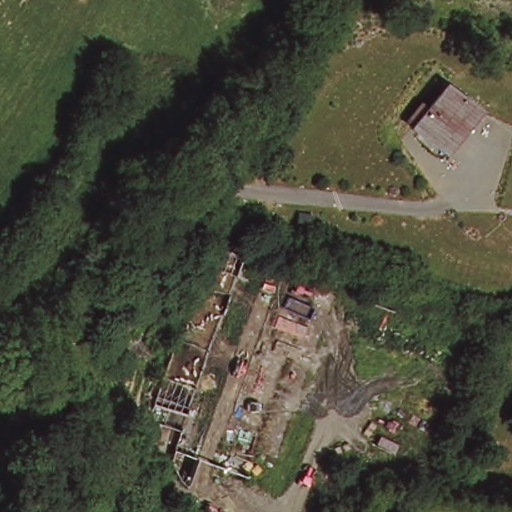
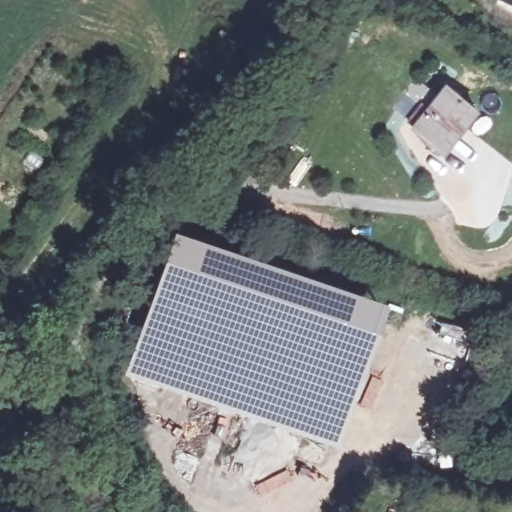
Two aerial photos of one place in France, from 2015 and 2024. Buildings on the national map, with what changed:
new [(512,3),(505,0),(512,0),(512,3)]
demolished [(434,80),(467,98),(441,147),(407,129),(434,80)]
new [(413,127),(446,83),(482,108),(448,154),(413,127)]
new [(172,233),(386,305),(336,448),(301,437),(253,419),(122,375),(172,233)]
demolished [(202,461),(166,447),(237,254),(297,277),(276,387),(247,465),(242,476),(202,461)]
demolished [(315,284),(276,387),(297,277),(315,284)]

